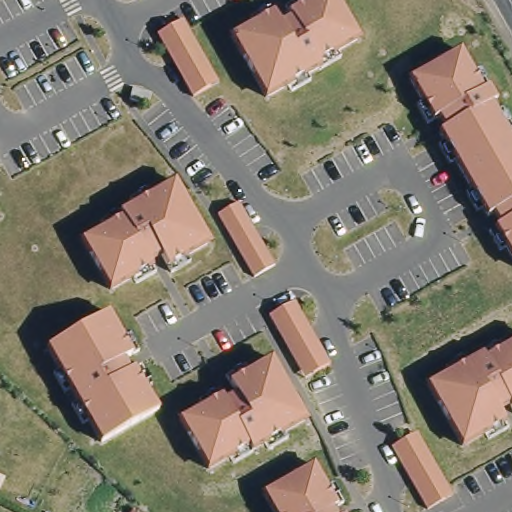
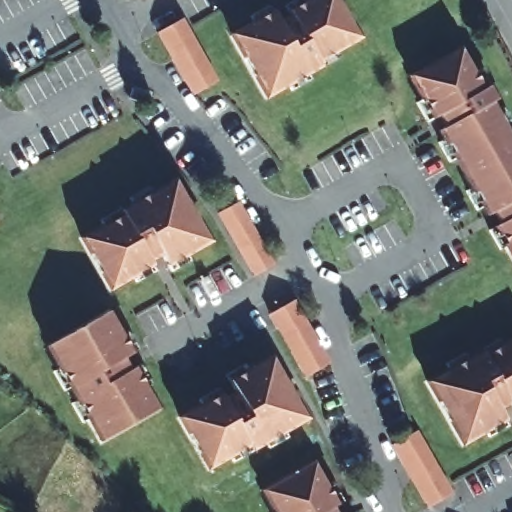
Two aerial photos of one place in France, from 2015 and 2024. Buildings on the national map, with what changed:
unchanged [(358,38),(318,62),(320,66),(266,97),(231,36),(273,12),(280,24),(291,17),(288,12),(310,0),(337,0),(358,38)]
unchanged [(157,32),(174,23),(181,19),(218,82),(210,86),(193,96),(157,32)]
unchanged [(460,49),(483,89),(488,86),(496,100),(491,102),(512,139),(512,255),(496,227),(500,224),(493,212),(488,216),(440,131),(445,127),(438,116),(434,119),(410,77),(460,49)]
unchanged [(149,104),(130,98),(132,89),(151,94),(149,104)]
unchanged [(210,242),(168,266),(161,255),(150,261),(152,266),(111,289),(82,239),(123,216),(120,211),(175,180),(210,242)]
unchanged [(238,202),(273,266),(252,277),(217,213),(238,202)]
unchanged [(270,313),(277,309),(277,310),(295,300),(330,362),(313,372),(305,376),(270,313)]
unchanged [(109,311),(133,353),(124,358),(130,370),(135,367),(158,407),(101,441),(47,347),(109,311)]
unchanged [(481,352),(484,357),(512,340),(512,407),(510,402),(498,409),(505,421),(463,444),(427,382),(481,352)]
unchanged [(251,450),(249,445),(208,468),(180,418),(221,395),(224,399),(235,392),(229,381),(270,357),(305,418),(251,450)]
unchanged [(392,444),(410,435),(413,432),(448,496),(445,498),(428,507),(392,444)]
unchanged [(314,463),(338,505),(332,507),(335,512),(275,512),(263,492),(314,463)]

